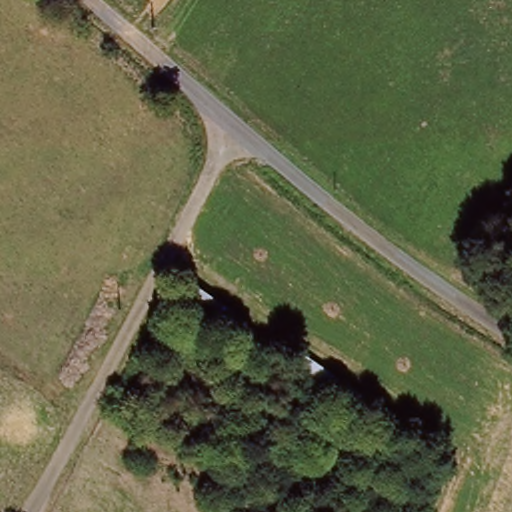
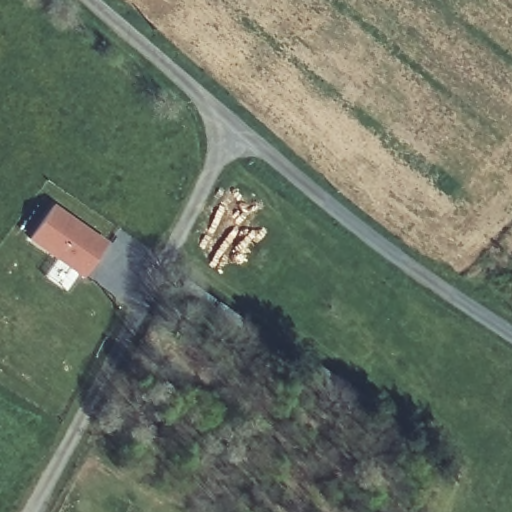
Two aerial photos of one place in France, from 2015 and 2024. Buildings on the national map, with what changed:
new [(82,277),(28,239),(52,204),(109,241),(82,277)]

